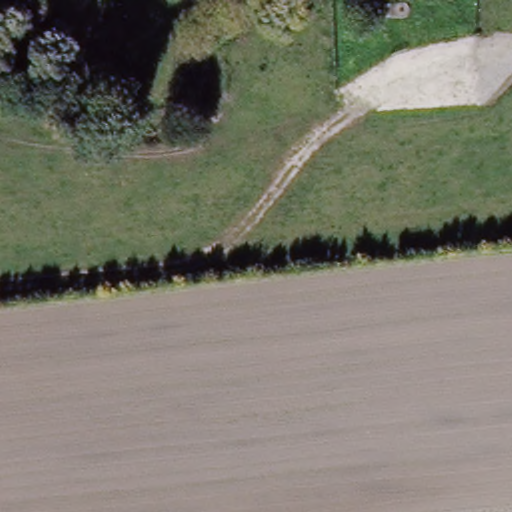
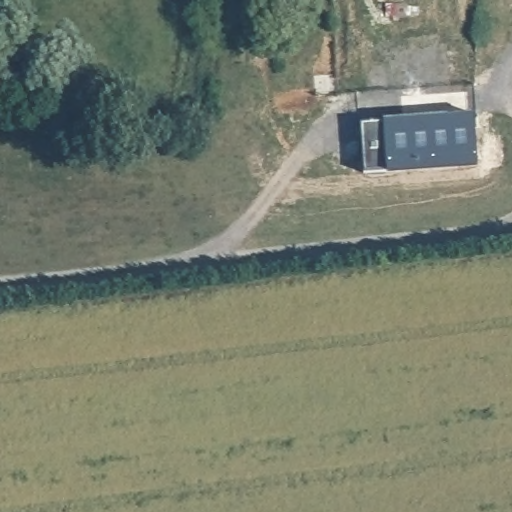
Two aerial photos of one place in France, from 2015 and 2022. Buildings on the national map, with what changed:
unchanged [(385,16),(384,2),(407,1),(407,16),(385,16)]
new [(474,115),(477,165),(364,173),(360,123),(474,115)]

